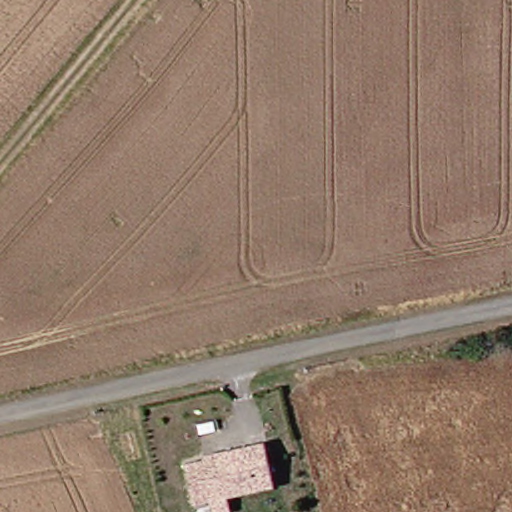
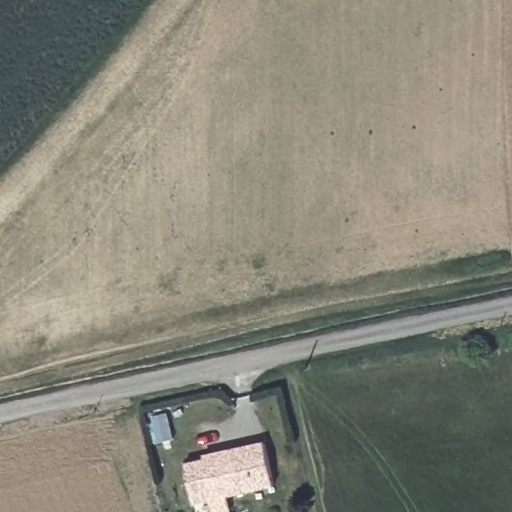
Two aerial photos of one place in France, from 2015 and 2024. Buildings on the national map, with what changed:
unchanged [(194,502),(185,462),(215,454),(214,451),(267,440),(276,484),(229,495),(232,508),(217,512),(215,512),(212,498),(194,502)]

